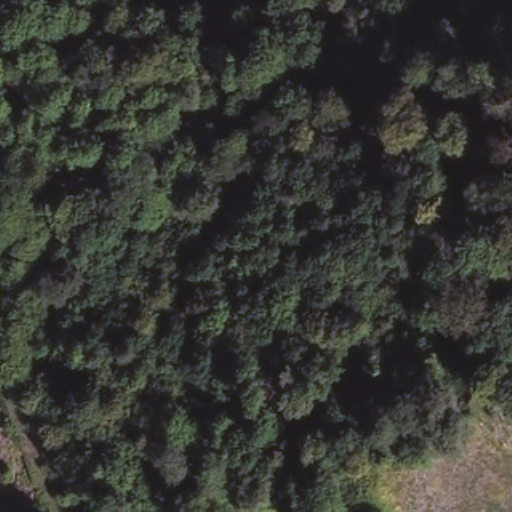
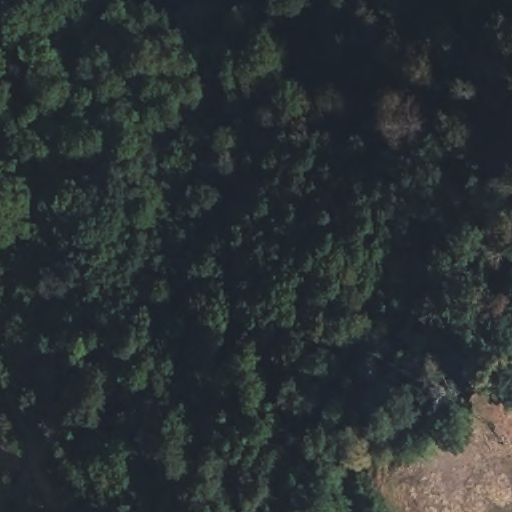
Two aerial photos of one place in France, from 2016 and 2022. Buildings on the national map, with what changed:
unchanged [(23,147),(20,181),(0,180),(0,143),(23,147)]

